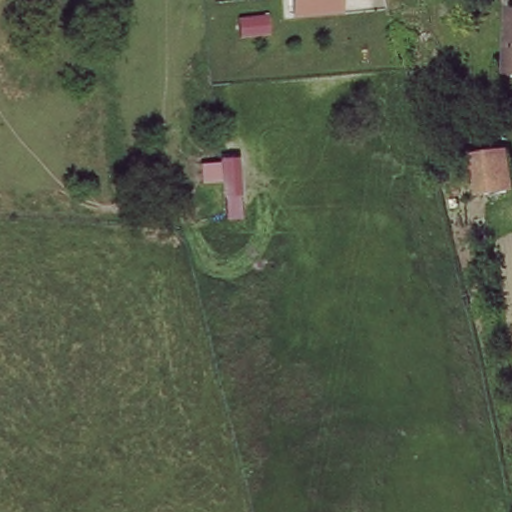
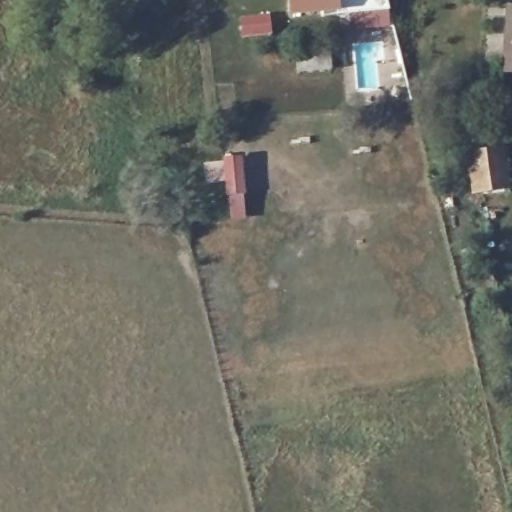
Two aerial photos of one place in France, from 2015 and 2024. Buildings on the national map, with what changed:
unchanged [(335,10),(292,12),(292,0),(335,0),(335,10)]
unchanged [(512,72),(507,71),(511,9),(512,9),(512,72)]
unchanged [(277,41),(242,45),(239,20),(273,15),(277,41)]
unchanged [(512,191),(475,200),(467,158),(507,148),(512,175),(512,191)]
unchanged [(256,199),(228,202),(226,185),(208,187),(204,165),(227,161),(227,154),(251,154),(256,199)]

